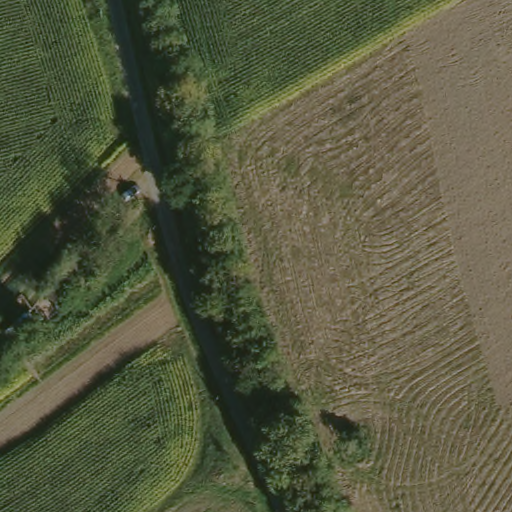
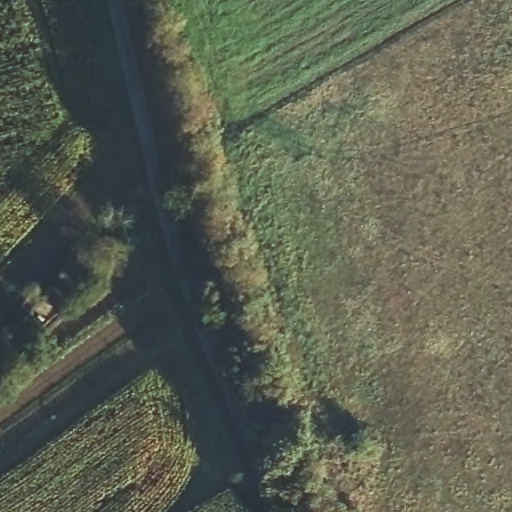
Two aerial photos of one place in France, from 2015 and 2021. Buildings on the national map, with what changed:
unchanged [(59,306),(44,296),(76,252),(91,262),(59,306)]

